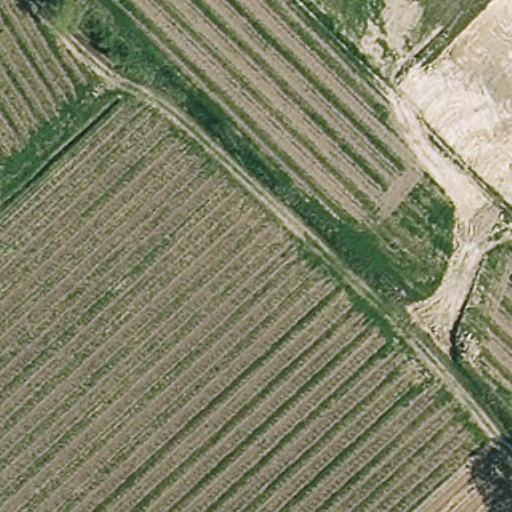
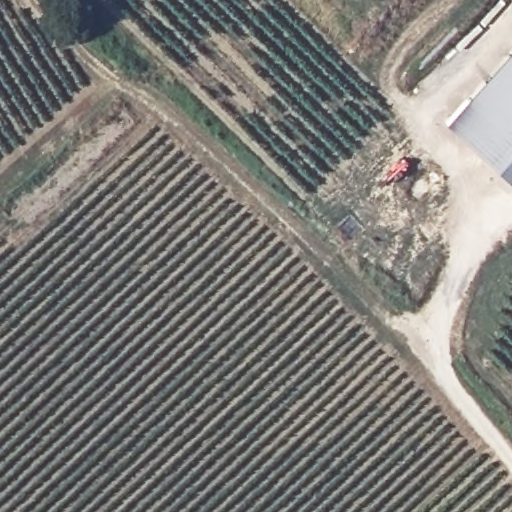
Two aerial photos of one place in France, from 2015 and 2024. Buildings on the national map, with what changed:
new [(512,51),(512,184),(447,123),(512,51)]

